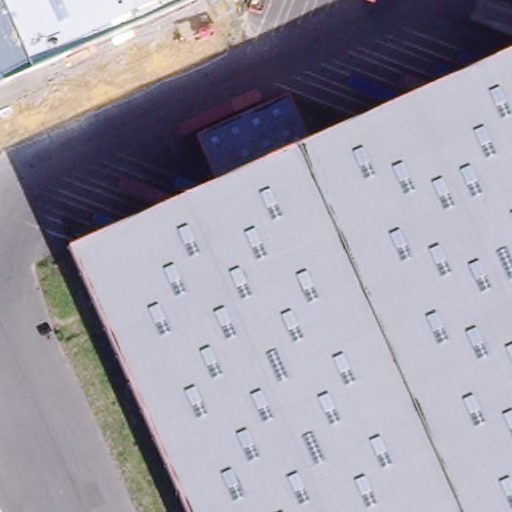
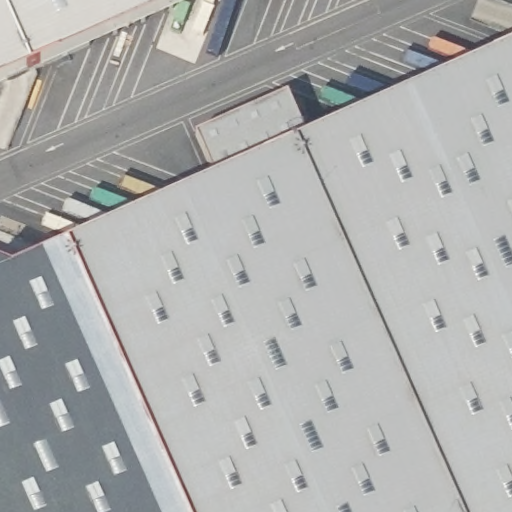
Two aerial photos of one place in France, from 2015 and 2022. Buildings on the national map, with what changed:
unchanged [(0,0),(196,0),(0,85),(0,0)]
unchanged [(186,512),(68,245),(217,180),(197,135),(287,97),(306,140),(512,49),(512,512),(186,512)]
new [(0,512),(0,276),(68,245),(186,512),(0,512)]

